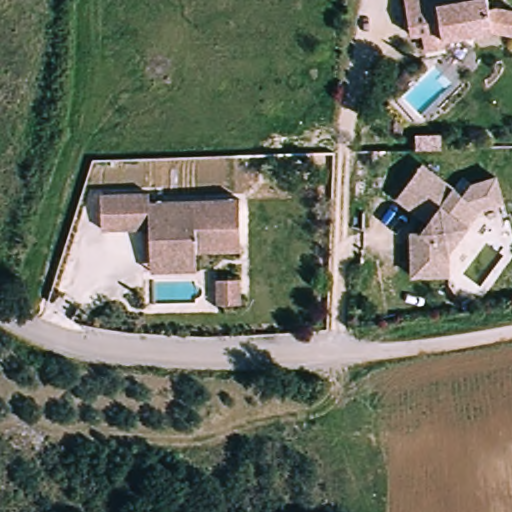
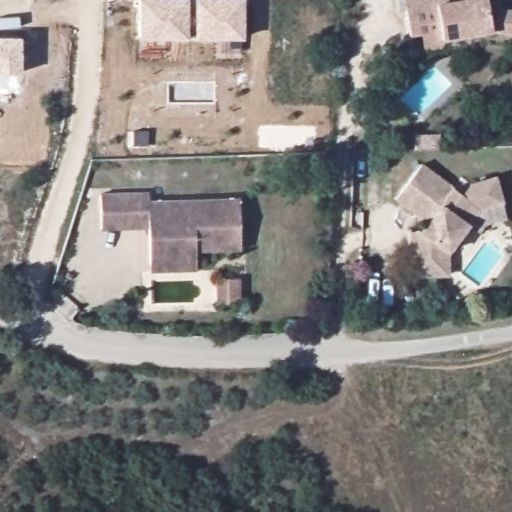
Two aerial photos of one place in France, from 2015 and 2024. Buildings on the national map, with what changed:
new [(138,39),(138,0),(243,0),(243,39),(138,39)]
unchanged [(428,53),(426,37),(414,38),(412,11),(411,0),(492,0),(494,15),(501,15),(512,19),(512,45),(496,39),(446,44),(448,51),(428,53)]
new [(0,36),(20,36),(20,71),(0,71),(0,36)]
unchanged [(422,135),(446,134),(446,147),(439,147),(423,148),(422,135)]
unchanged [(425,237),(433,227),(401,203),(425,169),(467,200),(475,188),(502,182),(508,206),(486,211),(453,257),(456,280),(419,284),(416,250),(414,238),(425,237)]
unchanged [(154,197),(154,206),(244,203),(246,246),(183,249),(184,269),(156,270),(155,232),(108,234),(106,199),(154,197)]
unchanged [(184,269),(183,249),(246,246),(246,255),(201,257),(203,275),(156,277),(156,270),(184,269)]
unchanged [(247,306),(219,307),(218,281),(246,280),(247,306)]

